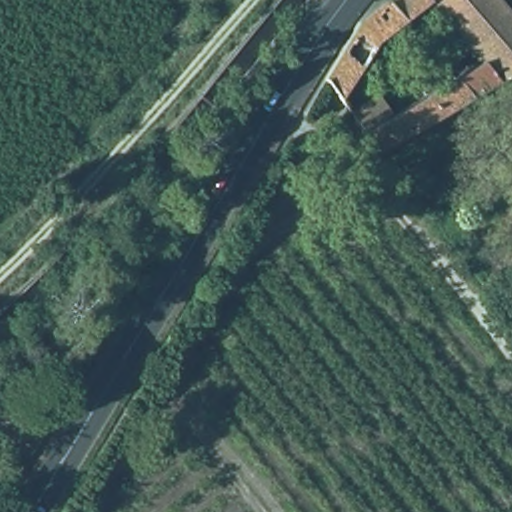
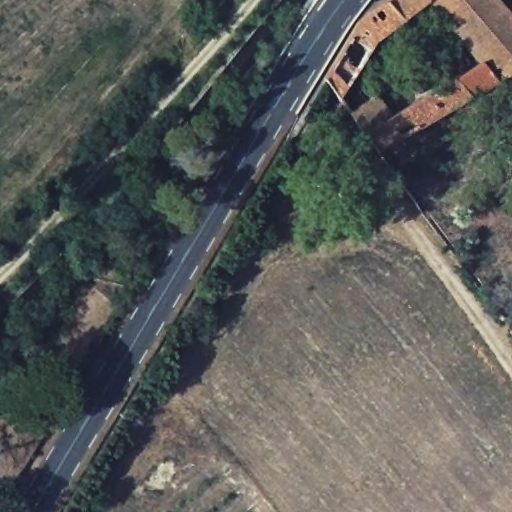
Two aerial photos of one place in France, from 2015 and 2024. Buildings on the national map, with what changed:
unchanged [(394,0),(497,0),(512,18),(512,74),(378,151),(321,77),(355,22),(394,0)]

